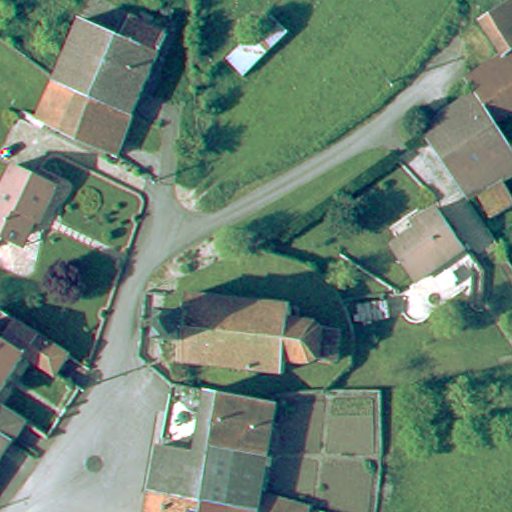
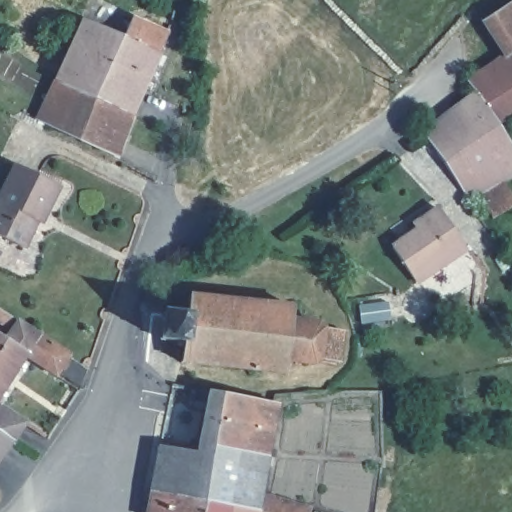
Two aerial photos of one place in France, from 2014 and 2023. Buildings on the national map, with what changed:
unchanged [(493,55),(503,49),(480,17),(504,0),(512,0),(512,122),(503,128),(475,87),(466,74),(493,55)]
unchanged [(168,31),(135,104),(51,66),(81,8),(120,25),(127,6),(153,17),(170,24),(168,31)]
unchanged [(132,110),(126,123),(115,147),(33,107),(51,66),(135,104),(132,110)]
unchanged [(475,87),(503,128),(512,140),(512,183),(504,172),(480,187),(469,195),(423,126),(475,87)]
unchanged [(40,201),(28,225),(16,219),(10,232),(0,226),(0,182),(13,155),(56,176),(44,202),(40,201)]
unchanged [(502,219),(480,187),(504,172),(512,183),(512,212),(502,219)]
unchanged [(424,217),(420,212),(437,200),(469,241),(418,278),(391,242),(424,217)]
unchanged [(290,373),(182,357),(185,337),(163,335),(167,302),(190,305),(192,287),(298,301),(296,313),(347,327),(343,361),(290,362),(290,373)]
unchanged [(10,323),(0,317),(0,300),(43,327),(30,352),(32,355),(2,401),(31,420),(29,425),(20,440),(13,436),(0,427),(0,332),(3,334),(10,323)]
unchanged [(30,352),(43,327),(76,348),(60,372),(32,355),(30,352)]
unchanged [(197,448),(210,386),(280,401),(264,489),(311,500),(308,512),(271,512),(260,510),(150,486),(158,442),(197,448)]
unchanged [(0,458),(0,427),(13,436),(0,458)]
unchanged [(150,486),(260,510),(259,512),(144,512),(150,486)]

